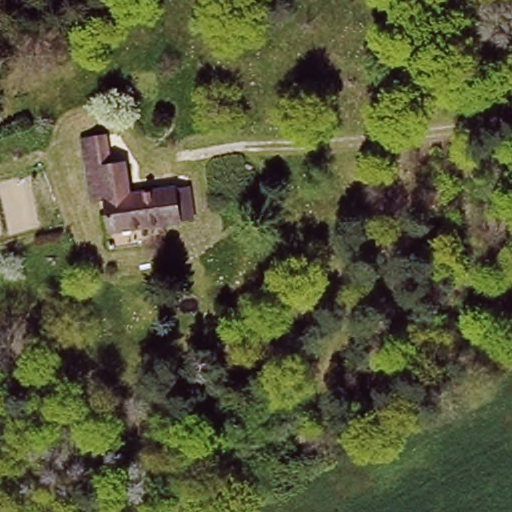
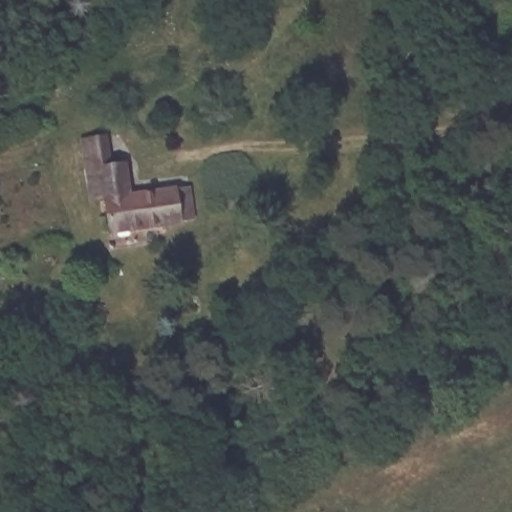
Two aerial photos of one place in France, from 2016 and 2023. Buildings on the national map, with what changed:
unchanged [(108,138),(111,172),(99,173),(103,202),(89,204),(83,141),(108,138)]
unchanged [(180,230),(107,235),(103,202),(99,173),(111,172),(125,170),(130,203),(189,197),(190,220),(191,229),(180,230)]

